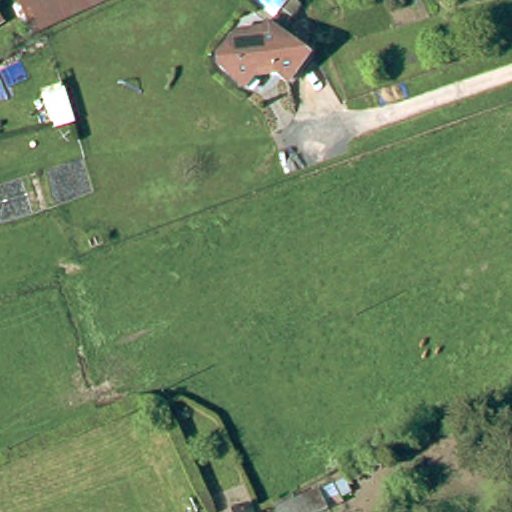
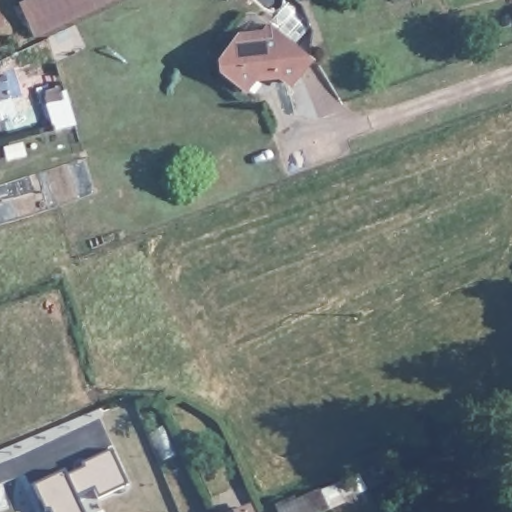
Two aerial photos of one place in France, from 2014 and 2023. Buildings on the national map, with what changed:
unchanged [(18,0),(117,0),(29,36),(15,2),(18,0)]
unchanged [(319,57),(297,83),(274,65),(253,87),(231,69),(228,57),(248,35),(261,46),(281,27),(319,57)]
unchanged [(0,41),(0,32),(3,40),(0,41)]
new [(64,473),(66,477),(83,470),(81,467),(111,452),(128,488),(98,503),(93,493),(78,501),(83,512),(43,512),(32,488),(64,473)]
unchanged [(329,508),(321,512),(283,512),(281,507),(298,498),(301,501),(322,492),(329,508)]

